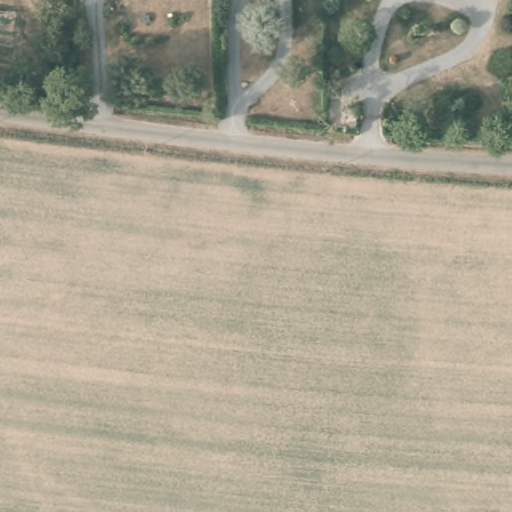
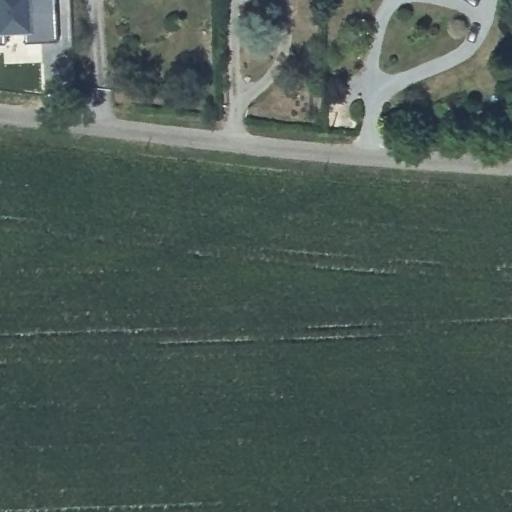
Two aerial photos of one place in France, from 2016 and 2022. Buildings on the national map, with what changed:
new [(60,44),(28,45),(27,34),(8,36),(8,46),(0,47),(0,0),(57,0),(60,44)]

